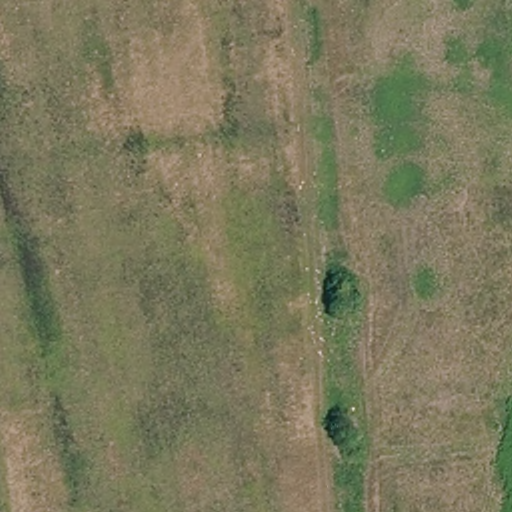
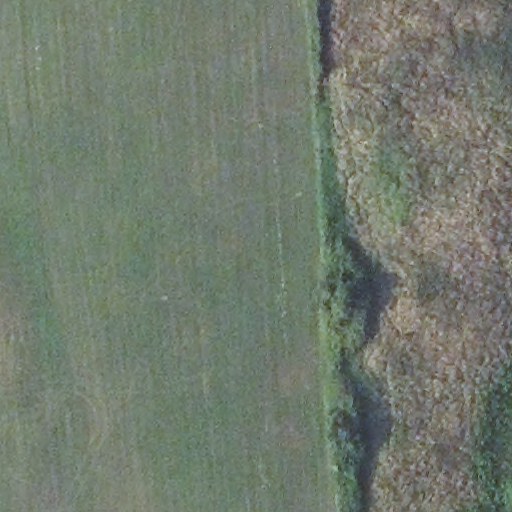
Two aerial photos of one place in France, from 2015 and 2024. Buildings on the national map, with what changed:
[]

